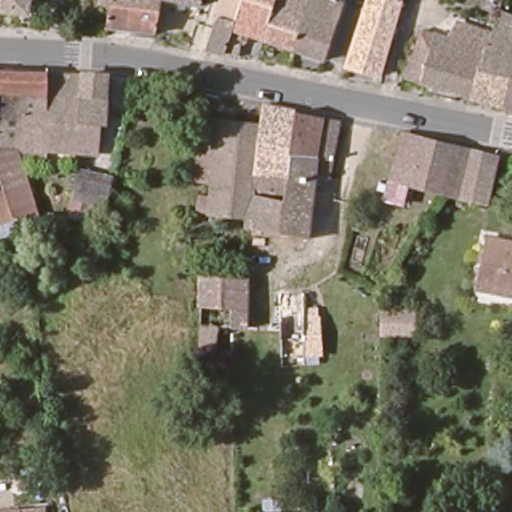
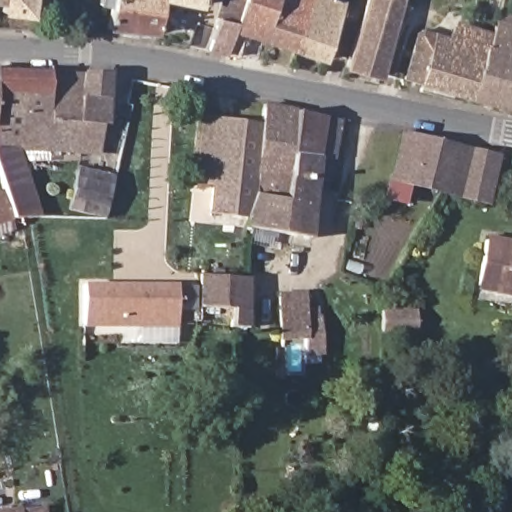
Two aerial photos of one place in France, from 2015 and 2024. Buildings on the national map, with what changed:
unchanged [(32,20),(0,18),(0,0),(35,0),(32,20)]
unchanged [(149,32),(148,36),(119,32),(119,27),(111,26),(116,0),(163,0),(158,32),(149,32)]
unchanged [(202,53),(221,0),(239,0),(221,56),(202,53)]
unchanged [(243,36),(234,58),(221,56),(239,0),(277,0),(263,42),(243,36)]
unchanged [(263,42),(277,0),(306,0),(290,51),(263,42)]
unchanged [(306,0),(331,0),(338,3),(322,61),(290,51),(306,0)]
unchanged [(376,76),(350,67),(371,0),(400,0),(376,76)]
unchanged [(484,61),(488,47),(497,22),(512,29),(512,111),(472,98),(484,61)]
unchanged [(407,77),(417,45),(432,49),(438,30),(461,37),(488,47),(484,61),(472,98),(407,77)]
unchanged [(0,144),(0,68),(47,72),(82,76),(114,79),(111,104),(109,132),(101,132),(99,156),(81,154),(19,147),(0,144)]
unchanged [(214,179),(187,175),(197,113),(253,124),(257,105),(305,116),(328,121),(343,124),(337,161),(333,185),(320,184),(312,237),(245,229),(248,216),(210,211),(214,179)]
unchanged [(487,207),(413,187),(407,186),(403,208),(382,204),(403,134),(500,161),(487,207)]
unchanged [(0,183),(0,144),(19,147),(39,214),(19,221),(24,238),(2,245),(0,239),(0,194),(3,194),(0,183)]
unchanged [(86,175),(109,180),(101,213),(80,210),(86,175)]
unchanged [(502,295),(483,292),(488,247),(505,249),(512,249),(512,296),(502,295)]
unchanged [(200,323),(201,305),(201,275),(237,277),(248,278),(246,327),(226,325),(200,323)]
new [(82,327),(82,283),(177,284),(177,328),(82,327)]
unchanged [(283,367),(278,297),(300,295),(303,353),(303,368),(283,367)]
unchanged [(318,295),(322,353),(303,353),(300,295),(318,295)]
unchanged [(386,335),(417,335),(418,358),(386,357),(386,335)]

